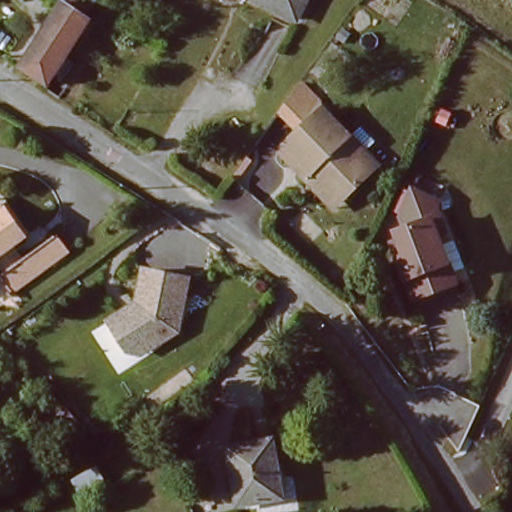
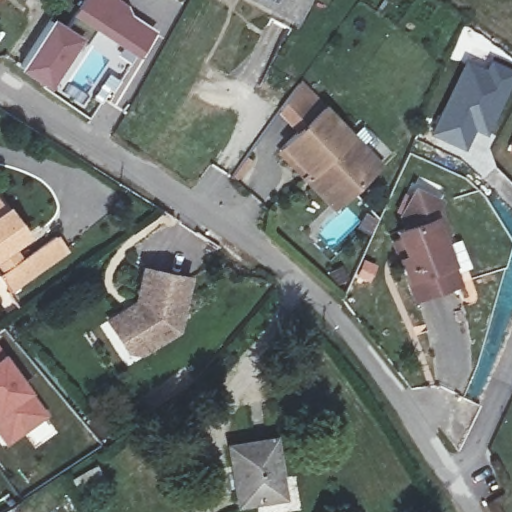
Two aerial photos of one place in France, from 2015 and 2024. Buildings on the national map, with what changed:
demolished [(62,0),(86,16),(43,81),(14,61),(56,0),(62,0)]
new [(65,26),(81,0),(123,0),(126,3),(131,16),(157,32),(140,59),(96,30),(88,43),(83,37),(50,89),(19,70),(51,18),(65,26)]
unchanged [(290,20),(250,0),(308,0),(297,24),(290,20)]
new [(429,135),(464,57),(484,68),(489,59),(512,70),(512,77),(488,136),(475,130),(465,151),(429,135)]
unchanged [(279,113),(304,82),(331,107),(300,133),(279,113)]
unchanged [(351,131),(383,166),(333,208),(320,193),(281,149),(331,107),(351,131)]
new [(510,153),(512,147),(512,154),(510,153)]
unchanged [(442,199),(433,222),(458,284),(409,297),(387,234),(402,228),(393,213),(409,185),(442,199)]
unchanged [(23,229),(10,240),(19,254),(55,228),(73,252),(10,296),(0,282),(0,274),(3,272),(0,268),(0,196),(8,208),(23,229)]
unchanged [(188,326),(132,360),(110,323),(138,302),(143,269),(193,276),(188,326)]
new [(0,351),(50,419),(29,435),(13,447),(7,438),(0,429),(0,351)]
unchanged [(281,499),(236,506),(226,450),(271,441),(281,499)]

